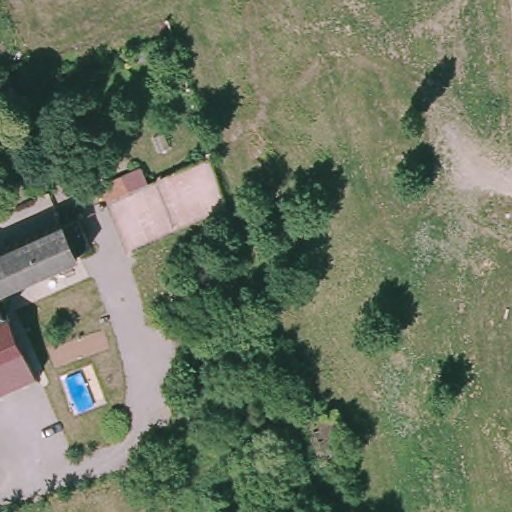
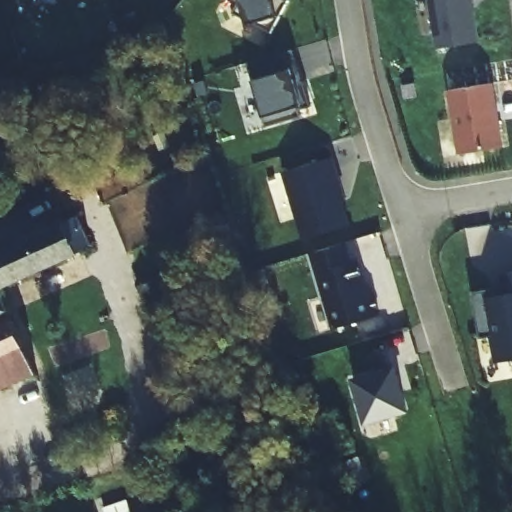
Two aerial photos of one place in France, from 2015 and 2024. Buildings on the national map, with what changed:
new [(271,28),(233,9),(238,0),(287,0),(271,28)]
new [(477,42),(435,48),(427,0),(472,0),(477,42)]
new [(247,60),(262,54),(269,72),(288,65),(293,81),(302,78),(309,102),(297,106),(300,113),(266,121),(247,60)]
new [(493,82),(504,147),(456,154),(446,92),(493,82)]
new [(335,157),(353,226),(305,244),(283,172),(335,157)]
unchanged [(95,246),(80,251),(81,255),(46,271),(5,291),(13,312),(11,313),(0,317),(0,253),(65,223),(67,226),(83,219),(95,246)]
new [(341,240),(345,262),(356,261),(364,292),(372,289),(377,313),(334,324),(313,249),(341,240)]
new [(481,336),(473,294),(503,289),(500,275),(512,273),(512,359),(495,362),(490,335),(481,336)]
unchanged [(11,313),(37,373),(0,391),(0,317),(11,313)]
new [(351,378),(396,365),(410,412),(364,425),(351,378)]
demolished [(315,373),(332,414),(346,409),(364,450),(347,458),(318,470),(300,429),(310,424),(293,382),(302,378),(315,373)]

